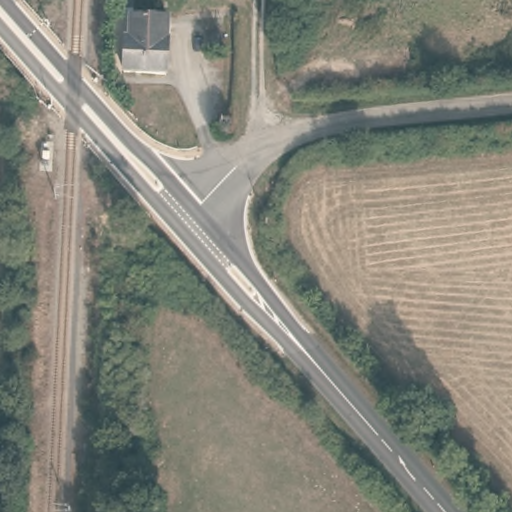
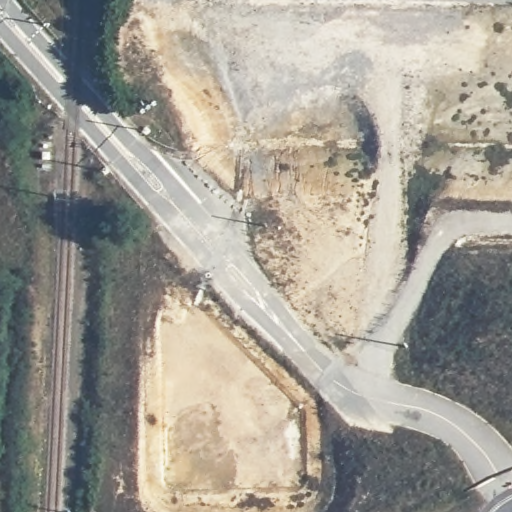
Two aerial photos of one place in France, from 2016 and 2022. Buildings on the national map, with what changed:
demolished [(163,75),(124,75),(126,20),(164,20),(163,75)]

